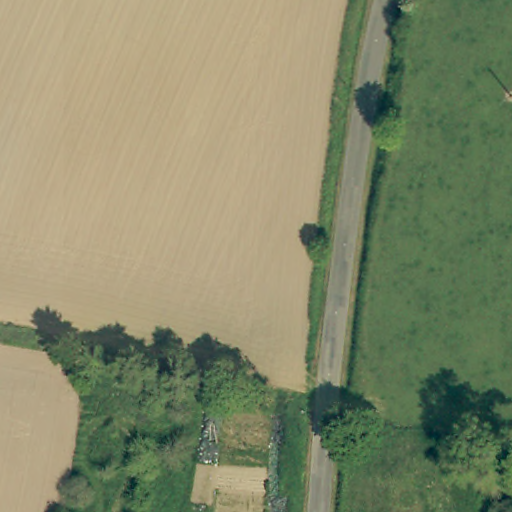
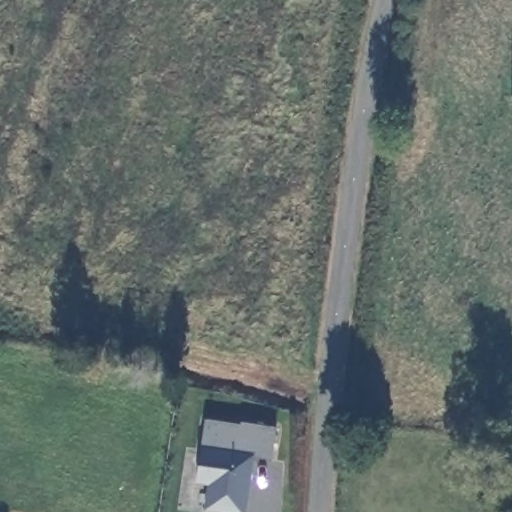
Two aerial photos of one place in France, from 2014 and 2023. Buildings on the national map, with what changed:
new [(207,486),(196,484),(207,414),(277,427),(270,460),(254,458),(245,512),(219,512),(204,509),(207,486)]

